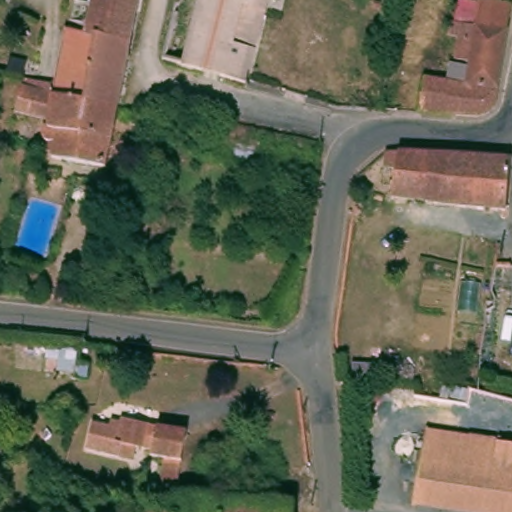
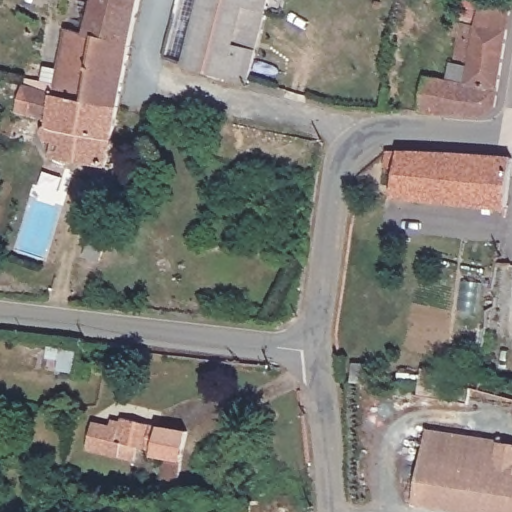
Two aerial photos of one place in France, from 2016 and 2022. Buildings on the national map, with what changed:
unchanged [(63,31),(71,0),(136,0),(129,39),(116,108),(105,106),(66,96),(63,95),(55,93),(66,32),(63,31)]
unchanged [(165,43),(175,1),(175,0),(267,0),(260,27),(246,84),(161,60),(165,43)]
unchanged [(443,76),(447,56),(451,56),(454,35),(445,33),(447,19),(456,20),(459,0),(473,0),(507,7),(498,59),(492,95),(483,110),(474,112),(464,112),(437,110),(437,112),(414,107),(420,73),(443,76)]
unchanged [(55,93),(63,95),(66,96),(105,106),(116,108),(106,164),(112,165),(111,170),(95,167),(51,158),(53,152),(46,150),(48,145),(45,144),(43,142),(41,137),(41,133),(42,131),(45,127),(49,127),(50,120),(44,119),(15,112),(20,91),(22,85),(55,93)]
unchanged [(445,203),(386,197),(393,164),(378,162),(379,154),(379,151),(447,155),(506,159),(501,209),(445,203)]
unchanged [(123,423),(117,443),(122,446),(119,459),(83,452),(90,421),(110,426),(111,419),(123,422),(123,423)]
unchanged [(159,462),(149,459),(150,453),(138,450),(134,463),(119,459),(122,446),(117,443),(124,420),(186,436),(178,470),(175,492),(157,489),(159,462)]
unchanged [(408,500),(409,491),(417,447),(422,423),(503,437),(512,438),(512,512),(492,512),(408,500)]
unchanged [(294,506),(294,512),(174,512),(175,502),(265,505),(294,506)]

